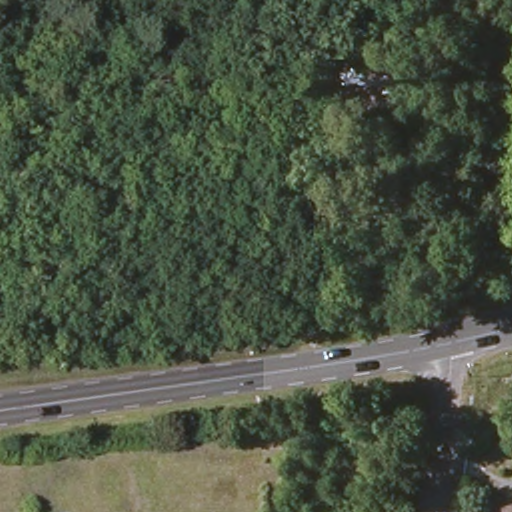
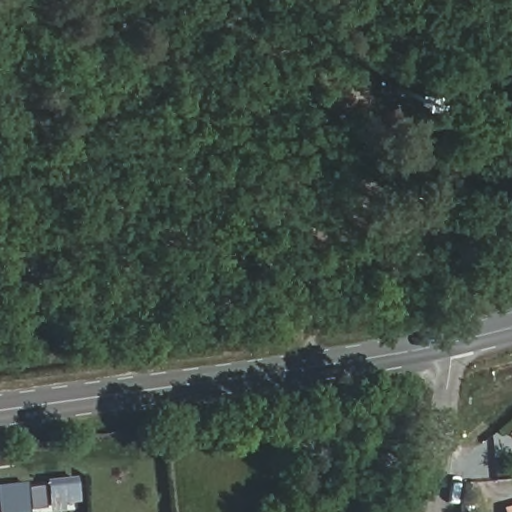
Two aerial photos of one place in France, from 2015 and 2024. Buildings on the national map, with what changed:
new [(76,476),(79,505),(22,512),(0,512),(0,488),(29,484),(28,488),(46,487),(45,481),(76,476)]

